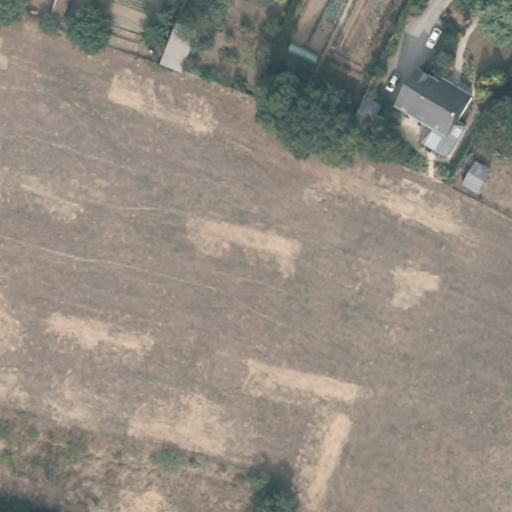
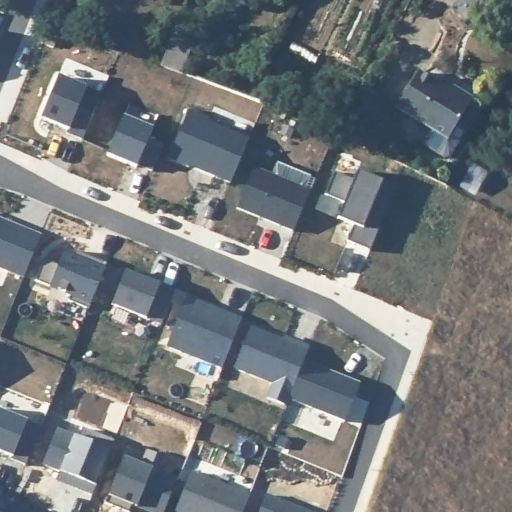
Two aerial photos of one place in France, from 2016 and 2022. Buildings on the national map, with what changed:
unchanged [(49,19),(56,0),(69,0),(61,23),(49,19)]
unchanged [(192,45),(180,73),(161,66),(173,37),(192,45)]
unchanged [(441,86),(443,81),(473,100),(449,140),(397,109),(419,73),(441,86)]
new [(59,76),(102,95),(83,140),(68,134),(69,130),(42,119),(59,76)]
new [(189,111),(212,119),(209,124),(249,139),(231,184),(170,161),(189,111)]
new [(124,118),(153,130),(149,140),(164,146),(153,172),(138,166),(137,169),(108,156),(124,118)]
unchanged [(489,173),(478,192),(465,185),(477,166),(489,173)]
new [(255,168),(311,191),(294,232),(238,208),(255,168)]
new [(336,173),(354,180),(358,172),(397,187),(371,252),(348,243),(354,226),(340,220),(346,204),(327,195),(336,173)]
new [(24,279),(0,269),(0,217),(41,234),(24,279)]
new [(44,260),(59,266),(64,254),(73,257),(75,251),(108,264),(89,309),(69,301),(71,295),(36,281),(44,260)]
new [(126,272),(160,285),(158,291),(173,297),(161,326),(112,306),(126,272)]
new [(219,308),(226,311),(243,318),(223,368),(168,346),(188,296),(219,308)]
new [(252,327),(293,343),(294,340),(310,346),(304,361),(289,399),(287,406),(268,398),(274,384),(235,368),(252,327)]
new [(304,361),(361,383),(345,421),(289,399),(304,361)]
new [(26,464),(0,452),(0,411),(41,428),(26,464)]
new [(123,456),(141,462),(146,448),(169,458),(164,472),(179,478),(166,512),(149,512),(133,506),(130,512),(127,512),(104,504),(123,456)]
new [(192,472),(250,496),(243,512),(177,512),(175,512),(192,472)]
new [(267,494),(311,512),(259,512),(267,494)]

